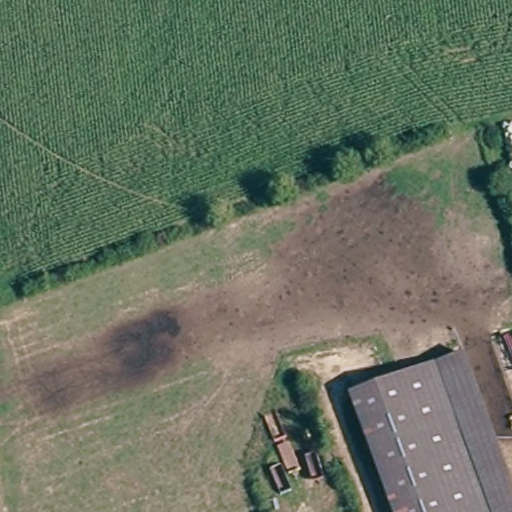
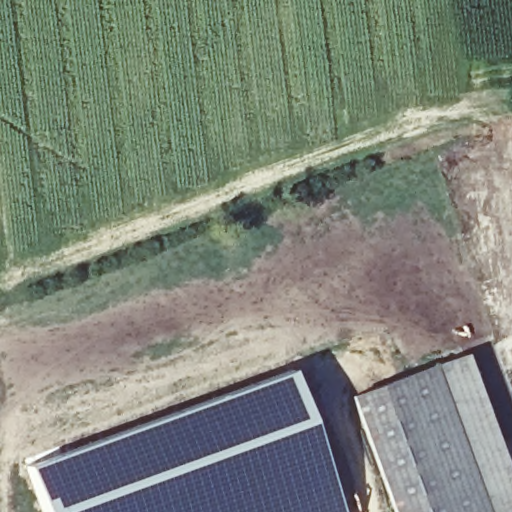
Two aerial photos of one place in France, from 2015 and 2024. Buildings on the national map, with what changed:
unchanged [(512,512),(391,512),(350,394),(464,357),(512,501),(512,512)]
new [(290,368),(309,417),(342,512),(42,512),(24,464),(290,368)]

